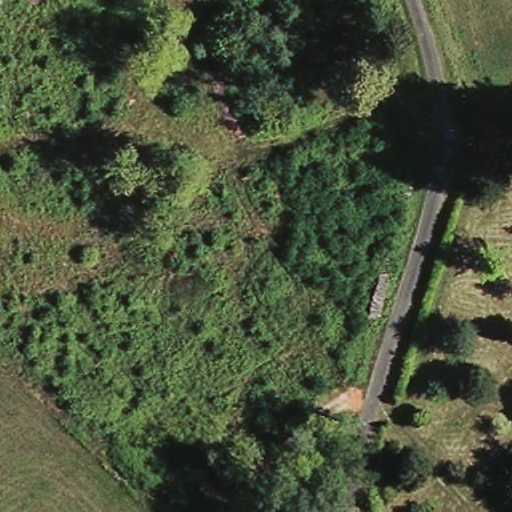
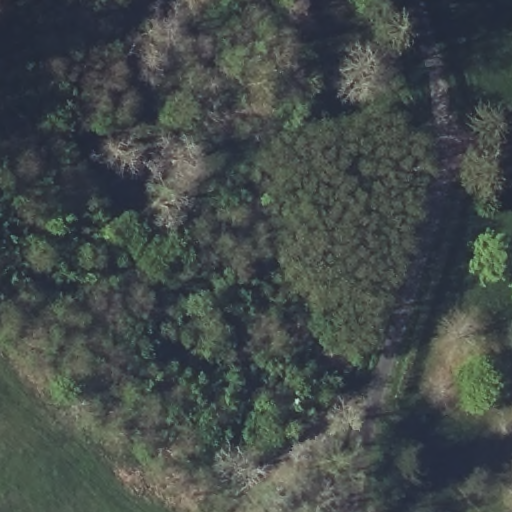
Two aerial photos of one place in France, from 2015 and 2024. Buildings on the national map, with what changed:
[]

